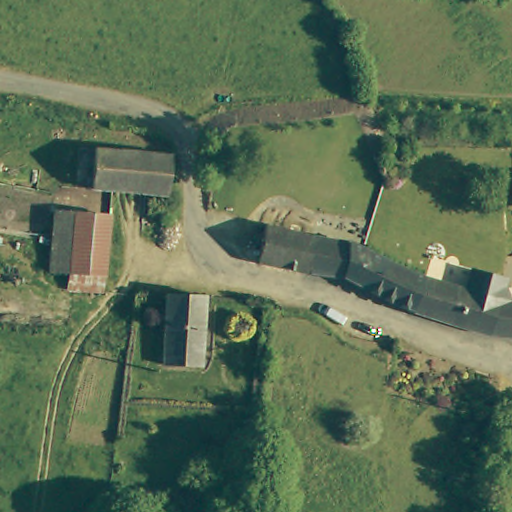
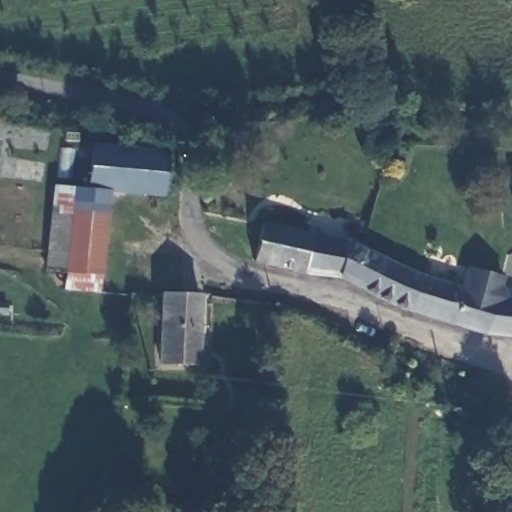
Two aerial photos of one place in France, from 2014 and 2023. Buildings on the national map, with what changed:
unchanged [(164,190),(108,186),(88,185),(92,144),(153,148),(166,149),(164,190)]
unchanged [(52,186),(88,185),(108,186),(107,211),(86,210),(55,209),(53,209),(52,186)]
unchanged [(51,232),(52,224),(53,209),(55,209),(86,210),(107,211),(102,290),(86,288),(78,287),(70,286),(71,271),(49,270),(51,232)]
unchanged [(381,262),(403,273),(419,277),(410,316),(394,311),(343,281),(314,277),(285,272),(258,266),(267,230),(294,236),(304,238),(353,248),(366,254),(381,262)]
unchanged [(458,330),(430,322),(410,316),(419,277),(460,290),(465,267),(498,275),(498,284),(504,297),(512,298),(512,336),(486,335),(458,330)]
unchanged [(201,297),(197,365),(162,361),(165,293),(201,297)]
unchanged [(446,441),(446,435),(451,435),(452,430),(452,427),(454,425),(457,425),(459,425),(461,427),(462,437),(465,437),(465,442),(446,441)]

